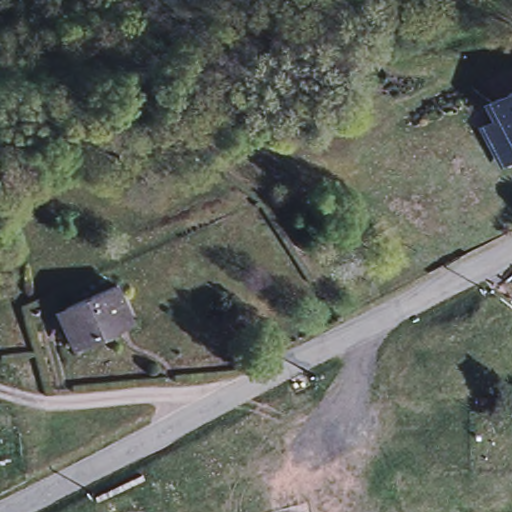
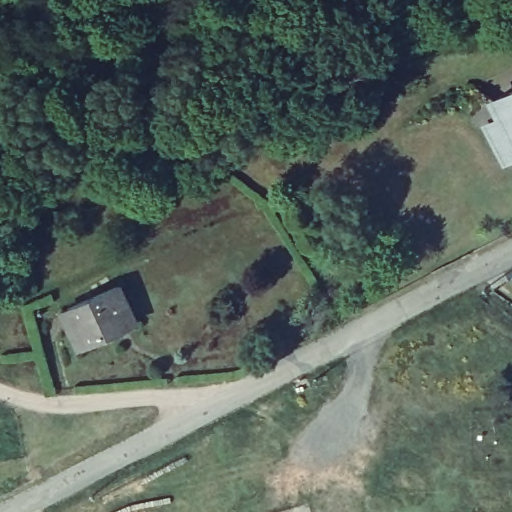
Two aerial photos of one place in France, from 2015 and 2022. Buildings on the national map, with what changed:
unchanged [(505,167),(496,151),(489,137),(480,120),(496,112),(512,104),(512,163),(505,167)]
unchanged [(121,285),(137,321),(85,345),(68,308),(121,285)]

